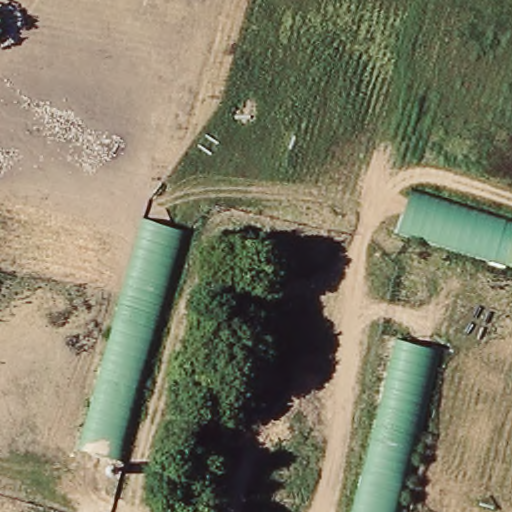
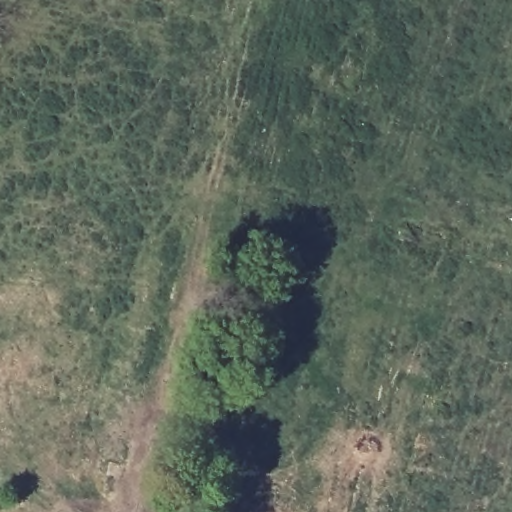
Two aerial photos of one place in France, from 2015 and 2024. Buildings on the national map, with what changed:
demolished [(492,263),(398,234),(412,189),(505,218),(492,263)]
demolished [(145,214),(188,225),(161,320),(120,309),(145,214)]
demolished [(512,220),(512,268),(492,263),(505,218),(512,220)]
demolished [(120,309),(161,320),(119,460),(77,450),(120,309)]
demolished [(440,347),(399,512),(351,512),(396,336),(440,347)]

